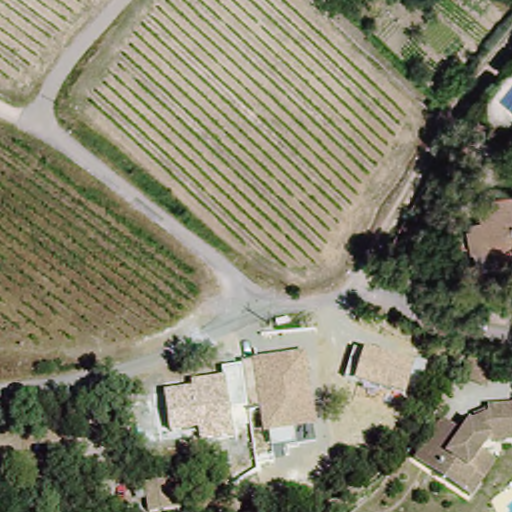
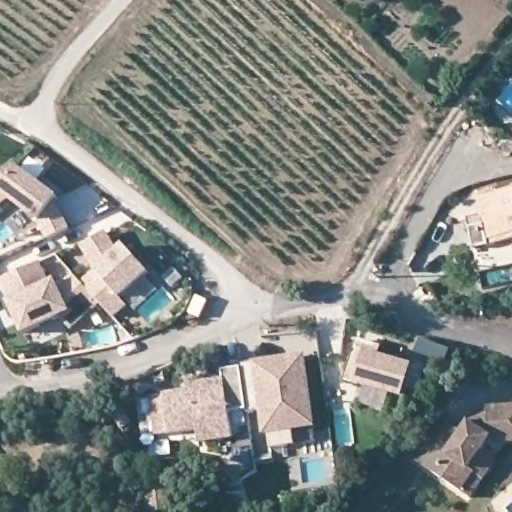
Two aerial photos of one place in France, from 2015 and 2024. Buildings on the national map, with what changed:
new [(0,207),(0,180),(14,169),(59,200),(41,223),(9,200),(0,207)]
unchanged [(478,222),(474,201),(512,190),(512,243),(489,249),(470,254),(465,235),(462,226),(478,222)]
new [(103,267),(95,260),(87,248),(107,235),(118,253),(125,247),(150,271),(120,298),(128,305),(117,318),(102,305),(85,285),(103,267)]
new [(11,303),(0,280),(42,262),(51,282),(58,279),(62,287),(75,275),(85,285),(102,305),(73,329),(61,317),(25,332),(11,303)]
new [(190,313),(199,296),(208,301),(200,318),(190,313)]
unchanged [(356,384),(357,382),(346,378),(355,349),(365,351),(416,370),(406,400),(356,384)]
unchanged [(165,394),(192,389),(191,382),(223,378),(222,370),(241,368),(241,363),(307,353),(318,428),(295,431),(297,445),(271,449),(270,435),(264,436),(260,409),(249,411),(231,413),(236,439),(202,445),(199,432),(171,436),(165,394)]
unchanged [(478,391),(457,378),(467,362),(490,374),(478,391)]
unchanged [(472,497),(422,473),(440,436),(461,446),(474,419),(492,418),(490,403),(512,400),(512,439),(490,444),(484,458),(502,466),(489,490),(482,502),(472,497)]
unchanged [(152,512),(147,485),(177,480),(182,512),(152,512)]

